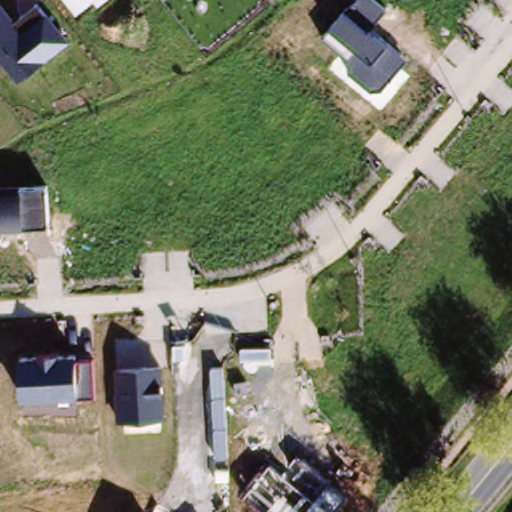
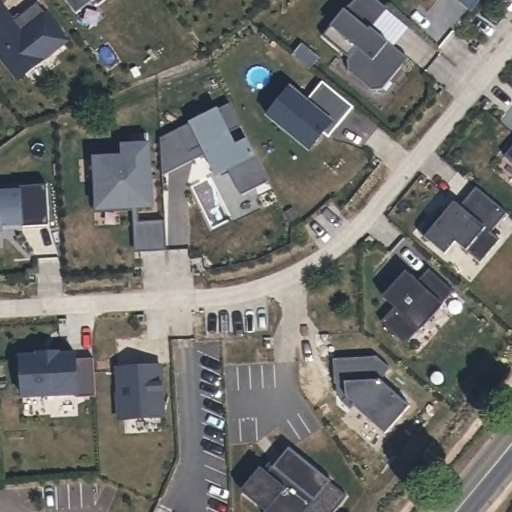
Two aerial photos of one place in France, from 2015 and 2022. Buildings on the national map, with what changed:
unchanged [(77,11),(68,0),(93,0),(77,11)]
unchanged [(98,4),(94,0),(104,0),(98,4)]
unchanged [(387,7),(373,27),(407,57),(382,88),(370,89),(349,70),(351,56),(325,35),(345,10),(350,13),(360,0),(377,0),(387,7)]
new [(471,10),(459,0),(479,0),(471,10)]
unchanged [(70,42),(20,80),(0,55),(0,5),(3,2),(17,18),(37,2),(70,42)]
new [(188,150),(177,129),(228,101),(239,122),(227,129),(232,141),(245,135),(265,174),(238,189),(225,164),(215,170),(200,144),(188,150)]
new [(188,150),(200,144),(205,152),(162,176),(160,138),(177,129),(188,150)]
new [(97,209),(95,159),(124,157),(123,146),(148,144),(150,179),(145,179),(146,191),(151,191),(152,206),(97,209)]
new [(512,186),(493,169),(512,147),(512,186)]
unchanged [(48,183),(50,224),(5,227),(5,234),(0,235),(0,187),(48,183)]
new [(445,209),(450,213),(458,202),(464,207),(479,189),(510,216),(500,228),(509,236),(489,260),(464,239),(453,251),(427,230),(445,209)]
new [(167,251),(140,253),(138,222),(165,220),(167,251)]
new [(388,300),(383,296),(407,270),(412,274),(418,280),(430,268),(455,290),(407,343),(382,321),(395,306),(388,300)]
unchanged [(76,351),(76,355),(95,356),(95,394),(22,398),(21,354),(76,351)]
new [(378,357),(390,369),(380,381),(410,407),(385,435),(353,407),(350,411),(341,403),(347,398),(346,384),(335,384),(333,359),(378,357)]
unchanged [(163,364),(167,416),(118,419),(116,366),(163,364)]
unchanged [(334,512),(261,512),(241,496),(272,460),(282,468),(298,451),(348,494),(334,512)]

